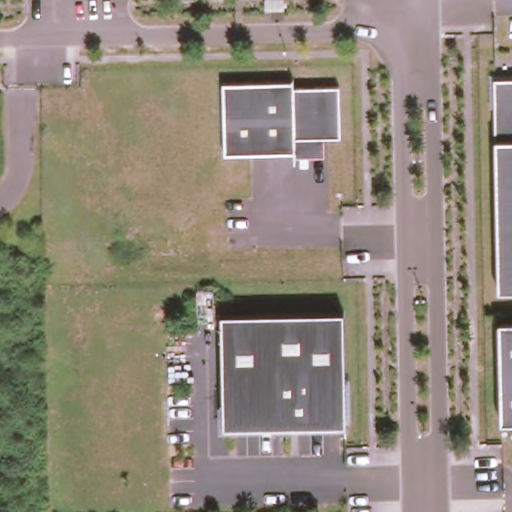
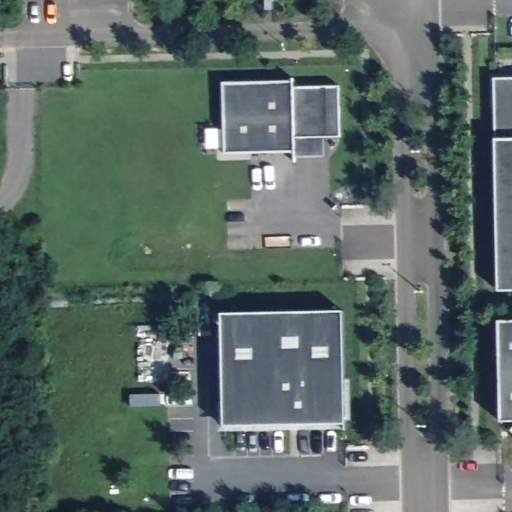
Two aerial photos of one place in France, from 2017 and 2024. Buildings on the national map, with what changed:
unchanged [(512,289),(499,290),(496,141),(495,79),(512,79),(512,289)]
unchanged [(292,81),(294,87),(340,86),(339,137),(321,138),(322,153),(293,153),(227,155),(223,85),(292,81)]
unchanged [(346,425),(225,429),(223,315),(342,312),(346,425)]
unchanged [(512,423),(502,423),(500,322),(512,322),(512,423)]
unchanged [(512,433),(512,435),(511,434),(512,433)]

